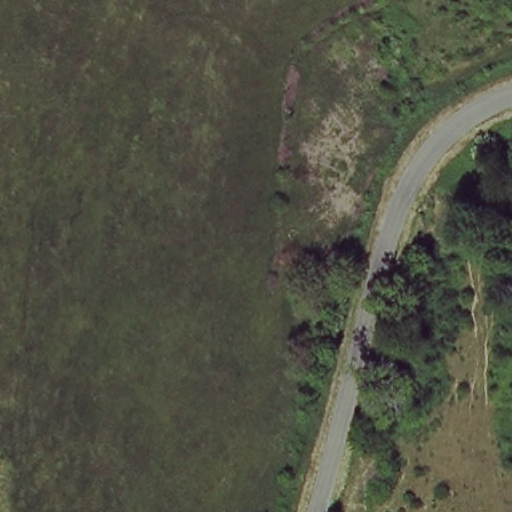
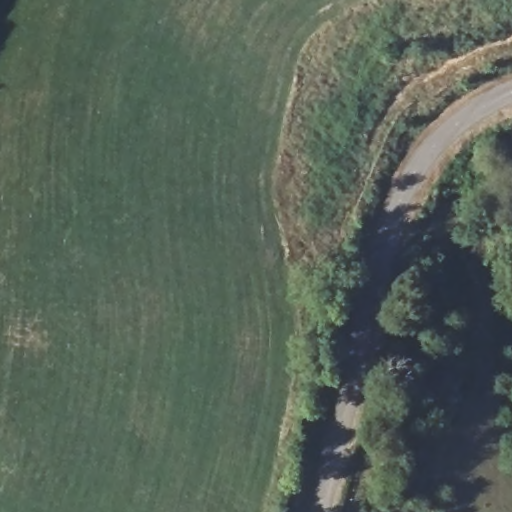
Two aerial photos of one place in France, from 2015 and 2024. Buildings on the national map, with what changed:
[]

